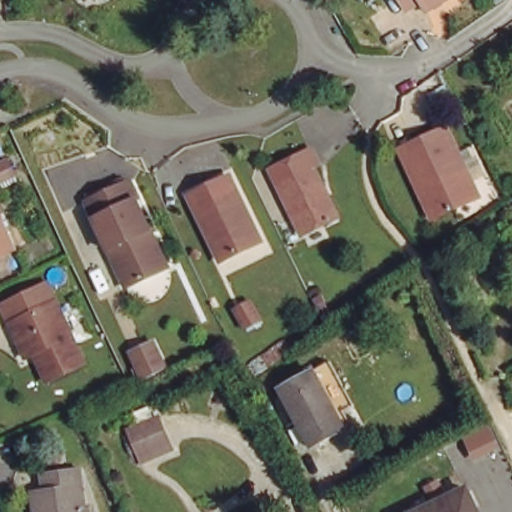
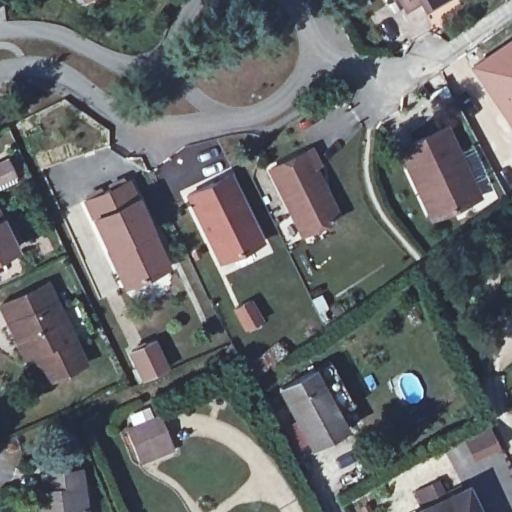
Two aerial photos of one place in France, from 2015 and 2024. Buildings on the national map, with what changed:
unchanged [(425,4),(410,10),(404,0),(453,0),(431,12),(425,4)]
new [(512,35),(512,123),(508,126),(467,66),(512,35)]
unchanged [(415,176),(398,139),(443,115),(478,188),(443,206),(432,211),(415,176)]
unchanged [(295,231),(264,165),(305,146),(315,165),(308,168),(328,211),(330,215),(305,227),(295,231)]
unchanged [(226,175),(259,242),(218,262),(186,195),(226,175)]
unchanged [(110,254),(87,205),(130,184),(172,271),(137,286),(127,291),(110,254)]
unchanged [(0,255),(0,224),(13,249),(0,255)]
unchanged [(255,292),(263,310),(245,320),(236,302),(255,292)]
unchanged [(0,322),(0,315),(43,294),(80,371),(42,387),(29,360),(20,363),(9,341),(0,322)]
unchanged [(130,347),(153,337),(164,361),(142,372),(130,347)]
unchanged [(311,452),(280,393),(313,376),(330,367),(352,411),(335,421),(343,436),(311,452)]
unchanged [(140,461),(135,450),(123,426),(155,410),(168,435),(173,445),(140,461)]
unchanged [(33,487),(40,487),(40,472),(77,466),(82,512),(35,512),(33,487)]
unchanged [(467,484),(482,512),(408,512),(467,484)]

